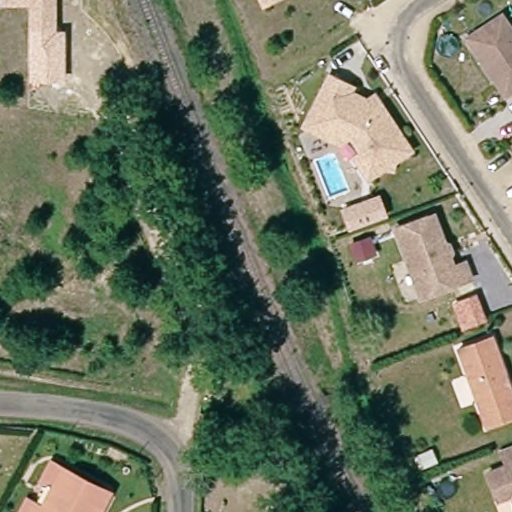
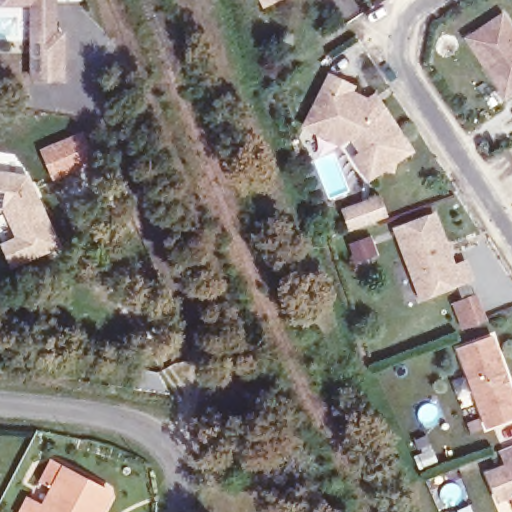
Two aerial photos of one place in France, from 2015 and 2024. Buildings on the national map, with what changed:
unchanged [(57,30),(66,30),(65,82),(29,79),(30,7),(0,7),(0,0),(57,0),(57,30)]
unchanged [(265,4),(263,0),(274,0),(265,4)]
unchanged [(512,83),(498,81),(468,35),(505,12),(512,24),(512,83)]
unchanged [(326,137),(303,126),(328,75),(351,86),(348,91),(366,100),(373,95),(378,103),(410,150),(392,161),(391,169),(383,168),(367,178),(354,157),(360,152),(350,136),(337,143),(326,137)]
new [(95,160),(52,179),(39,149),(82,131),(95,160)]
new [(29,175),(60,246),(11,268),(0,244),(0,242),(14,236),(4,209),(0,209),(0,171),(29,175)]
unchanged [(379,194),(388,217),(348,232),(340,209),(379,194)]
unchanged [(453,264),(464,260),(470,276),(421,295),(395,227),(435,213),(453,264)]
unchanged [(512,386),(512,414),(488,423),(458,345),(491,332),(512,386)]
unchanged [(497,496),(487,469),(508,461),(502,444),(512,440),(512,495),(510,491),(497,496)]
unchanged [(44,483),(52,466),(110,498),(103,512),(47,512),(58,491),(44,483)]
unchanged [(46,512),(23,512),(28,502),(46,512)]

